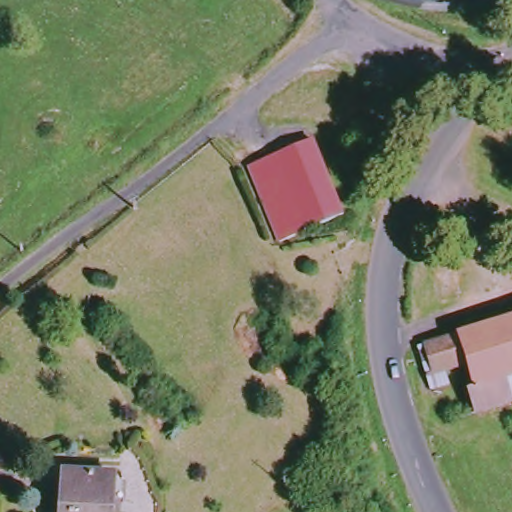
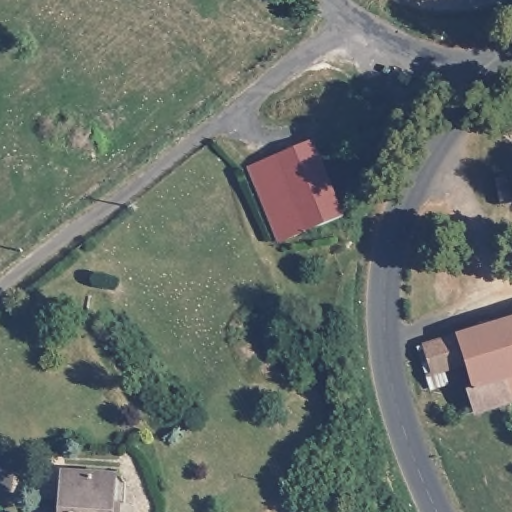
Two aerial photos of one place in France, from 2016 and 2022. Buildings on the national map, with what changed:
unchanged [(345,219),(287,241),(262,170),(322,150),(345,219)]
unchanged [(482,410),(477,388),(469,362),(435,372),(427,344),(512,319),(512,402),(482,410)]
unchanged [(69,512),(72,472),(123,475),(121,512),(69,512)]

